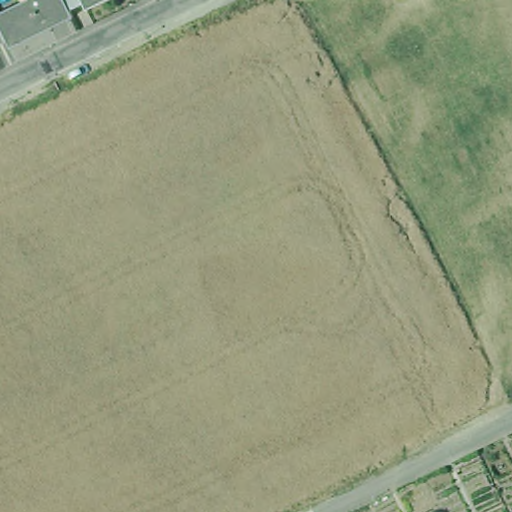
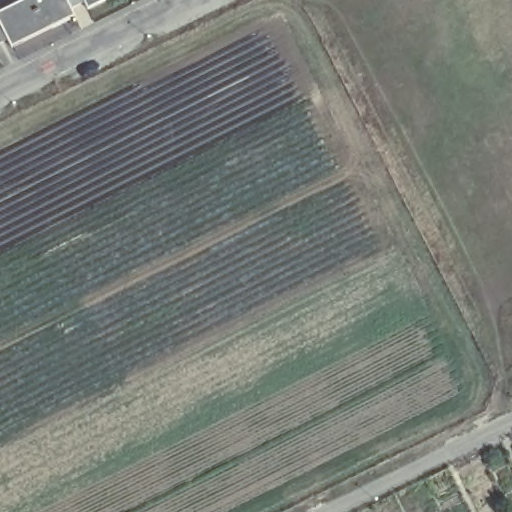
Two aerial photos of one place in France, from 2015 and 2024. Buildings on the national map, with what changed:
unchanged [(12,41),(0,48),(0,14),(1,15),(31,0),(70,0),(76,12),(78,16),(16,48),(12,41)]
unchanged [(89,5),(76,12),(70,0),(114,0),(92,11),(89,5)]

